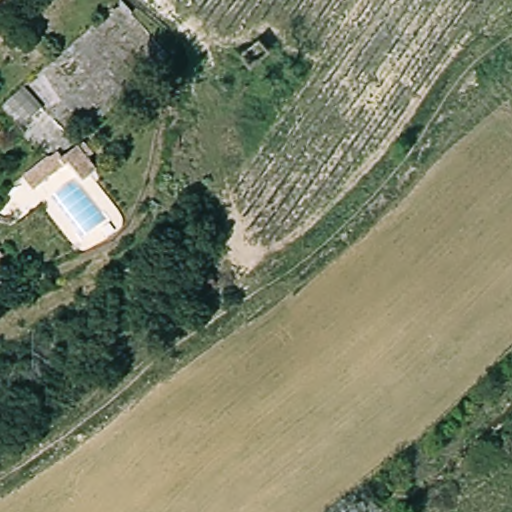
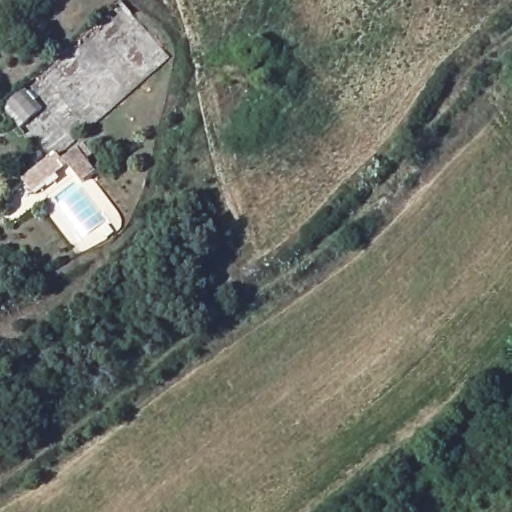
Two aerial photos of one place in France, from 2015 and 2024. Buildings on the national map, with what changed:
unchanged [(254,42),(269,58),(251,75),(237,56),(254,42)]
unchanged [(78,189),(60,173),(30,194),(19,179),(50,153),(58,162),(74,149),(95,174),(78,189)]

